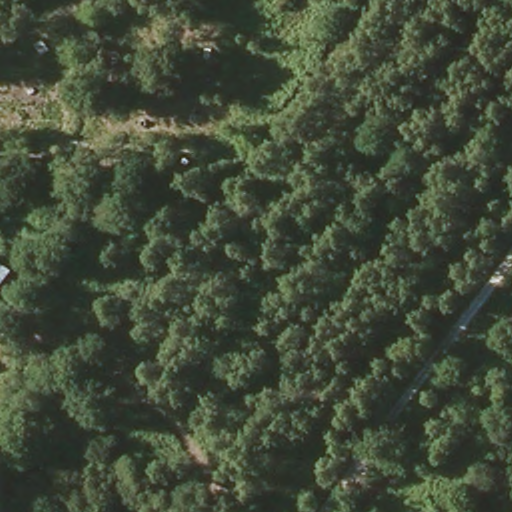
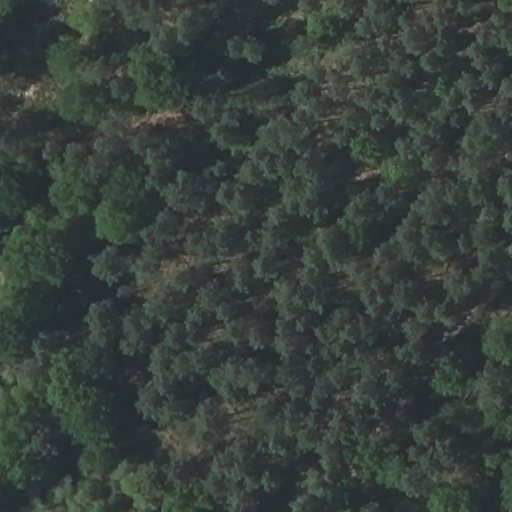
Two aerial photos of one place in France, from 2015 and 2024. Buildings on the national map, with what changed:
unchanged [(0,260),(14,270),(0,292),(0,260)]

